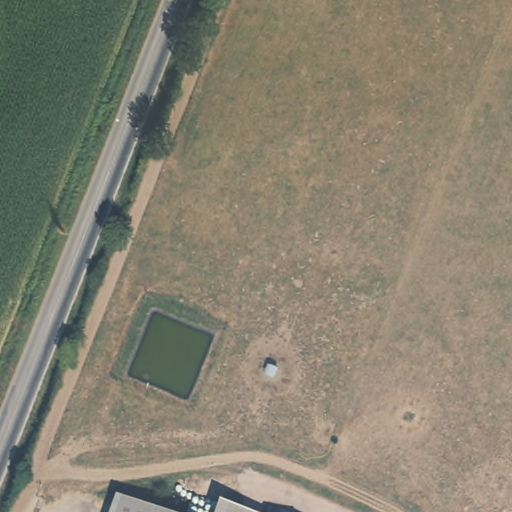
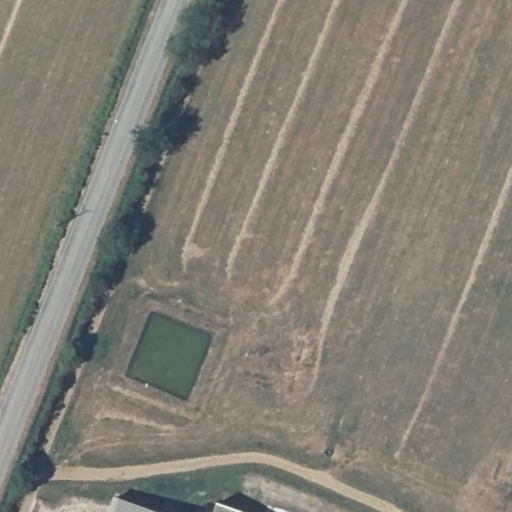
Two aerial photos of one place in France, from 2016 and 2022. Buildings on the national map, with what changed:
unchanged [(114,496),(162,512),(110,512),(114,496)]
unchanged [(219,501),(247,512),(214,512),(219,501)]

